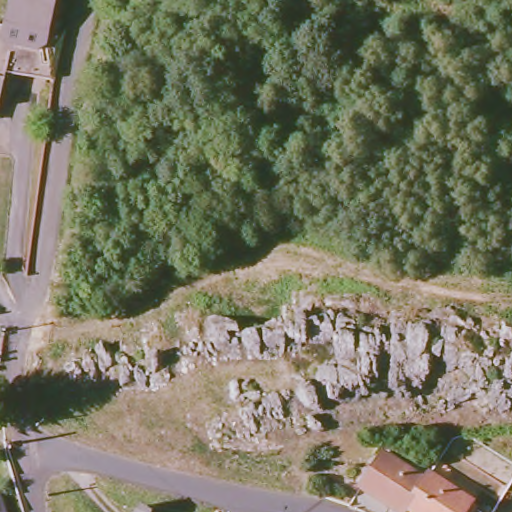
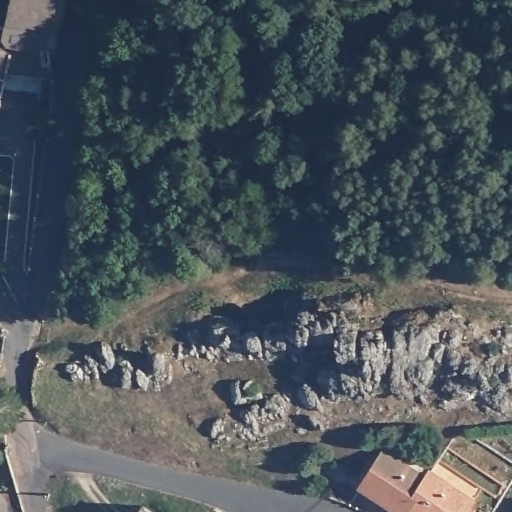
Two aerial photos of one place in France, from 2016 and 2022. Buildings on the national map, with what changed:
unchanged [(14,0),(73,0),(68,24),(54,81),(7,74),(5,81),(0,101),(0,27),(7,28),(14,0)]
unchanged [(407,510),(405,512),(397,512),(360,487),(383,452),(425,480),(407,510)]
unchanged [(473,503),(467,512),(410,512),(407,510),(425,480),(430,474),(473,503)]
unchanged [(0,496),(3,504),(5,512),(0,512),(0,496)]

